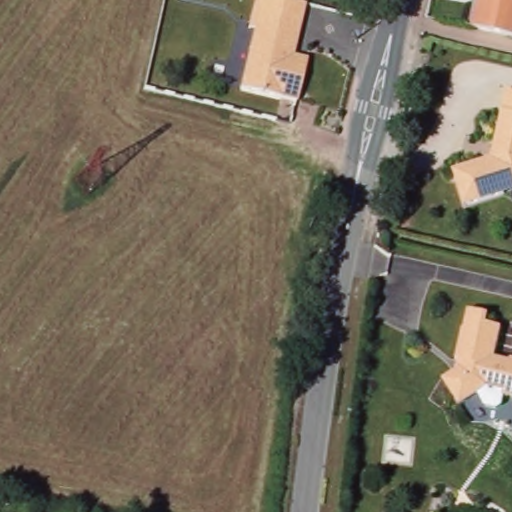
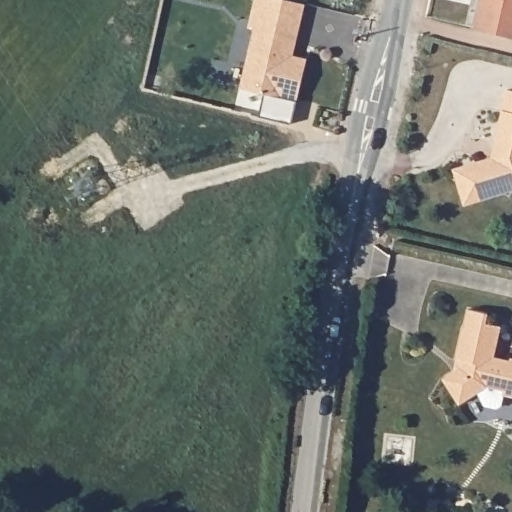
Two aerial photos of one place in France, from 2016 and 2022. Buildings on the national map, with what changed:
unchanged [(307,65),(297,107),(239,92),(255,32),(247,30),(255,0),(267,0),(281,3),(306,10),(295,50),(292,61),(307,65)]
unchanged [(473,25),(478,0),(512,0),(512,34),(473,25)]
unchanged [(463,204),(452,168),(491,156),(506,88),(512,90),(512,189),(503,191),(463,204)]
unchanged [(485,316),(482,326),(497,329),(491,360),(507,364),(507,361),(512,363),(512,400),(500,397),(497,407),(492,411),(482,408),(473,396),(456,407),(439,382),(457,371),(458,363),(452,362),(460,331),(461,331),(465,312),(485,316)]

